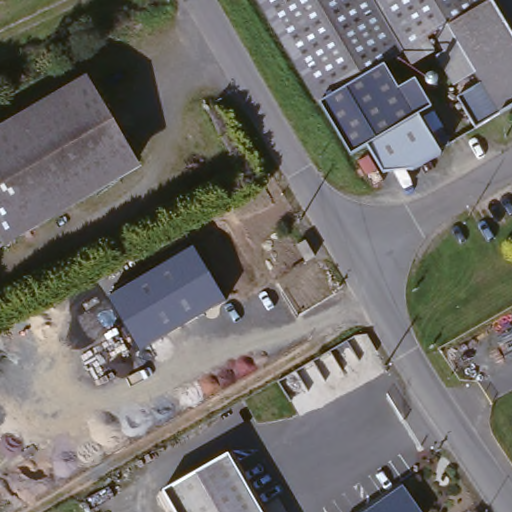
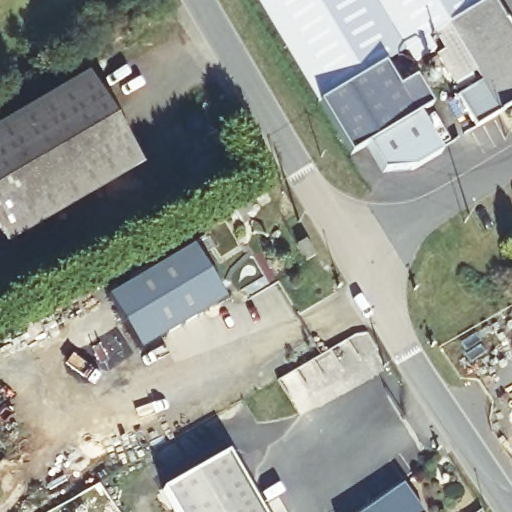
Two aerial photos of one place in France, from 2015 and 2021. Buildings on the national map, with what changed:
unchanged [(251,0),(329,0),(271,33),(251,0)]
unchanged [(512,49),(512,108),(465,134),(449,105),(478,89),(472,79),(450,91),(433,61),(455,49),(445,30),(428,38),(435,53),(405,70),(398,56),(378,66),(391,89),(408,80),(424,108),(343,156),(311,102),(271,33),(329,0),(484,0),(512,49)]
unchanged [(0,139),(86,85),(132,161),(0,238),(0,139)]
unchanged [(413,118),(439,158),(413,174),(381,173),(368,145),(413,118)]
unchanged [(141,350),(108,300),(193,248),(228,300),(141,350)]
unchanged [(224,455),(257,512),(177,512),(163,488),(224,455)]
unchanged [(419,512),(360,512),(399,484),(419,512)]

